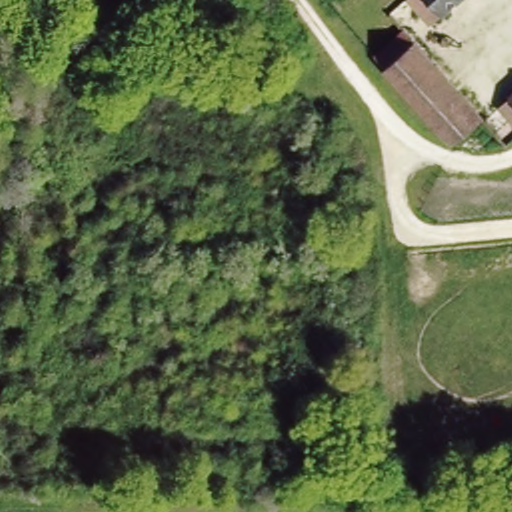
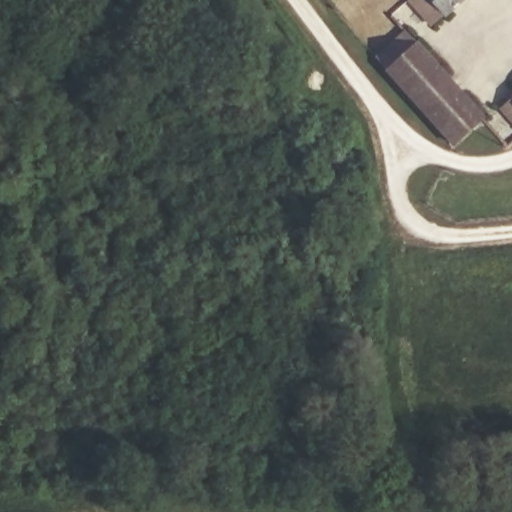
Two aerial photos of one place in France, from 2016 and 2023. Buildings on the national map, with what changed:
unchanged [(428,0),(451,0),(438,11),(428,0)]
unchanged [(376,54),(402,31),(479,116),(453,139),(376,54)]
unchanged [(512,92),(512,111),(502,100),(512,92)]

